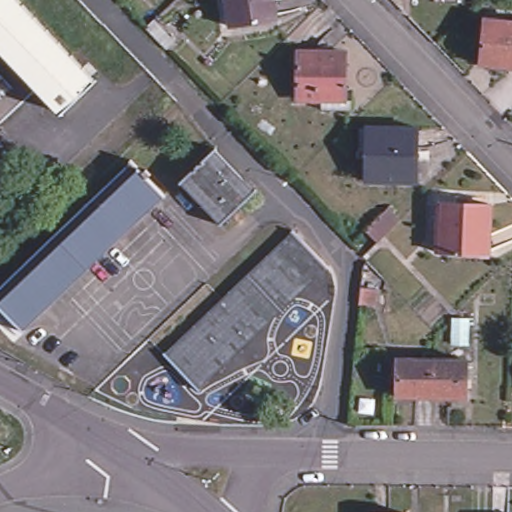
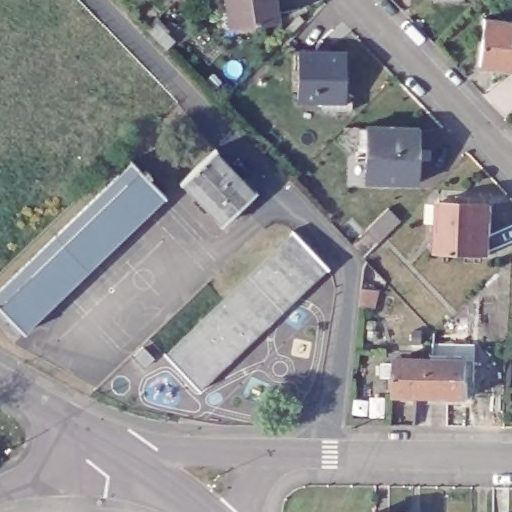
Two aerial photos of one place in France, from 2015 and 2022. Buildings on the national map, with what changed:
demolished [(65,115),(39,87),(0,47),(0,0),(21,0),(100,81),(65,115)]
unchanged [(232,29),(229,0),(277,0),(280,22),(232,29)]
unchanged [(436,4),(436,0),(467,0),(467,4),(436,4)]
unchanged [(180,42),(170,52),(150,31),(160,21),(180,42)]
unchanged [(487,21),(512,23),(512,70),(483,66),(487,21)]
unchanged [(302,55),(352,56),(350,103),(302,102),(302,55)]
unchanged [(375,129),(422,131),(422,188),(373,185),(375,129)]
unchanged [(256,188),(220,223),(218,221),(220,220),(182,180),(180,181),(179,180),(214,146),(215,146),(216,147),(215,148),(253,188),(255,187),(256,188)]
unchanged [(0,304),(0,296),(135,165),(134,163),(135,162),(170,198),(169,200),(167,198),(29,331),(31,333),(30,334),(0,304)]
unchanged [(445,201),(497,204),(495,255),(443,252),(445,201)]
unchanged [(370,235),(392,214),(403,225),(382,246),(367,260),(355,248),(370,235)]
unchanged [(170,354),(172,356),(297,236),(295,234),(297,232),(332,269),(332,270),(331,271),(329,269),(203,389),(205,391),(204,392),(168,355),(170,354)]
unchanged [(403,400),(405,360),(440,361),(440,401),(403,400)]
unchanged [(473,362),(473,402),(440,401),(440,361),(473,362)]

